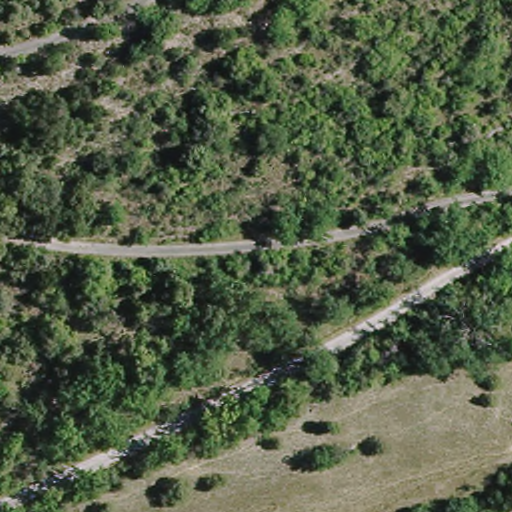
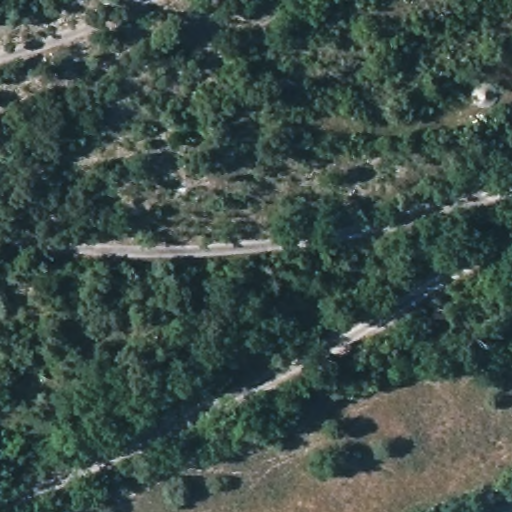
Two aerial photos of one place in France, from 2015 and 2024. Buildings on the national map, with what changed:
unchanged [(503,296),(498,295),(493,290),(491,284),(492,279),(495,275),(499,271),(505,271),(511,272),(512,274),(512,293),(508,295),(505,296),(503,296)]

